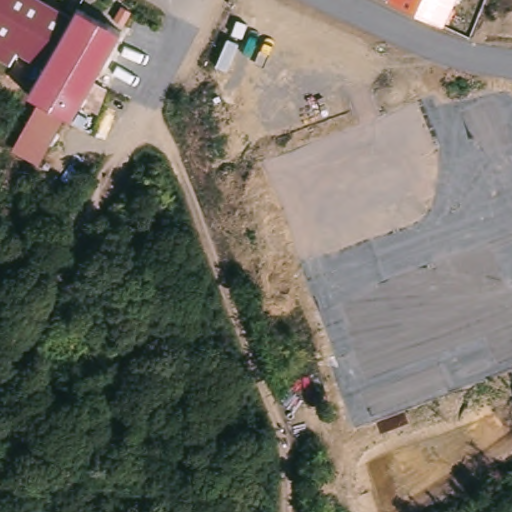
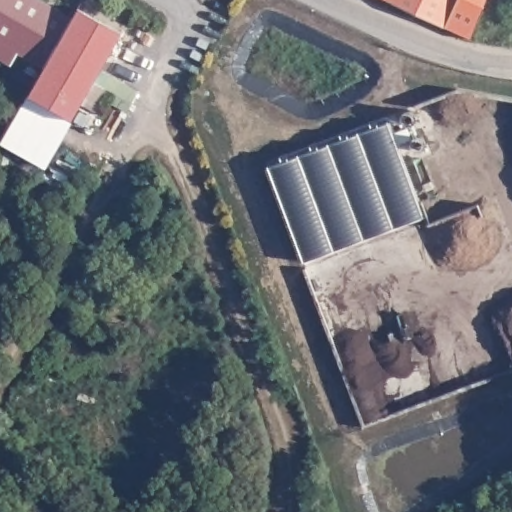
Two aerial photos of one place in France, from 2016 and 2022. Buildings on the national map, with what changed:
unchanged [(73,119),(28,95),(44,67),(17,51),(9,65),(0,59),(0,0),(47,0),(74,16),(79,8),(123,32),(73,119)]
unchanged [(442,27),(386,0),(387,0),(455,0),(442,27)]
new [(389,122),(425,217),(304,262),(268,167),(389,122)]

